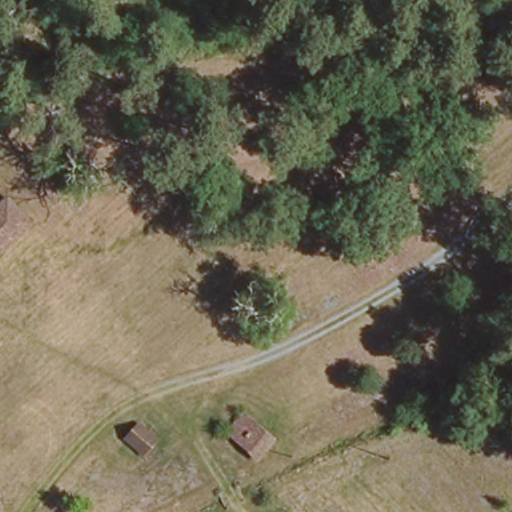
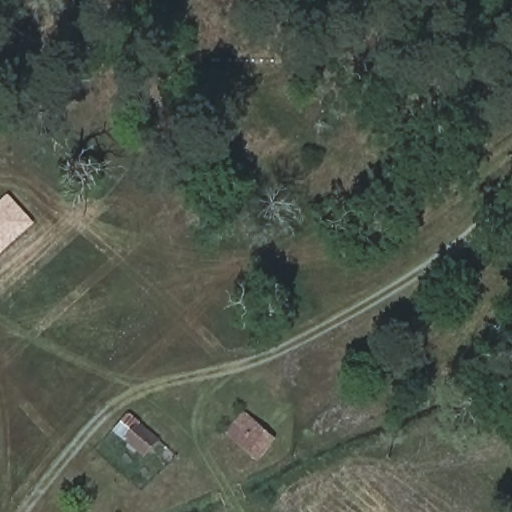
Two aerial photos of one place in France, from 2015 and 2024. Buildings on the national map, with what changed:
unchanged [(11,194),(32,220),(0,251),(0,204),(11,194)]
unchanged [(257,457),(228,433),(245,410),(278,438),(257,457)]
unchanged [(136,419),(160,439),(146,454),(123,436),(136,419)]

